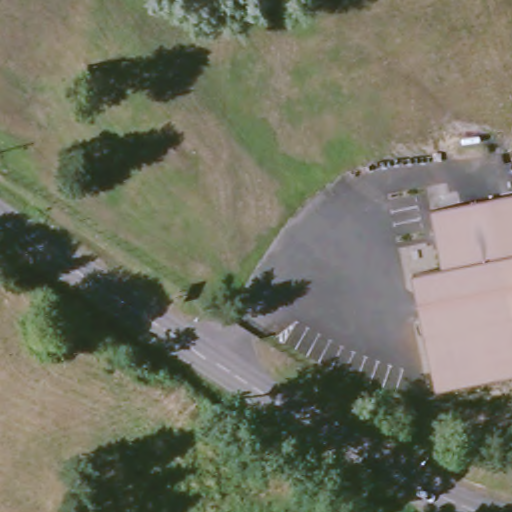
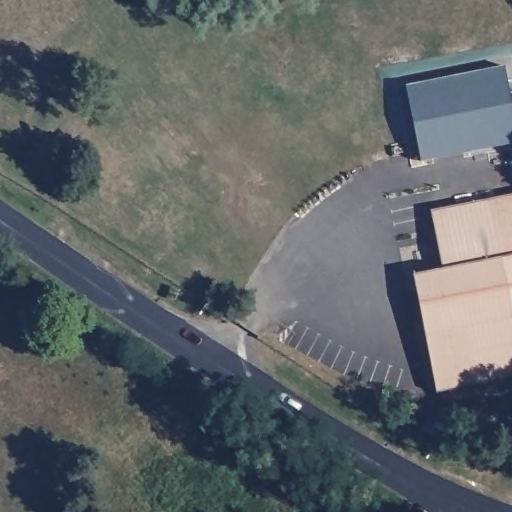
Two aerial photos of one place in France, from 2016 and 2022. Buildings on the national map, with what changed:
new [(419,161),(404,86),(504,66),(512,111),(512,143),(419,161)]
unchanged [(437,390),(414,276),(444,268),(433,205),(512,189),(512,373),(437,390)]

